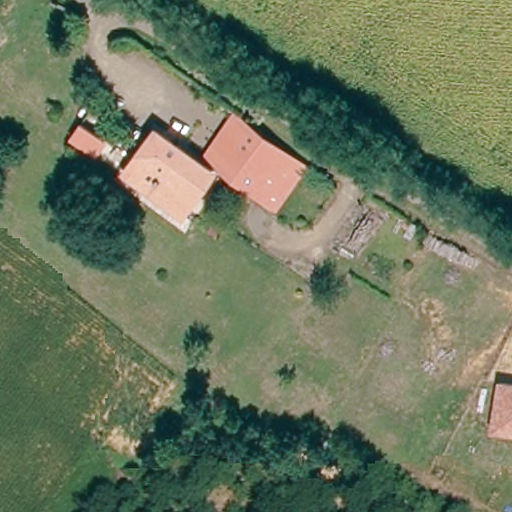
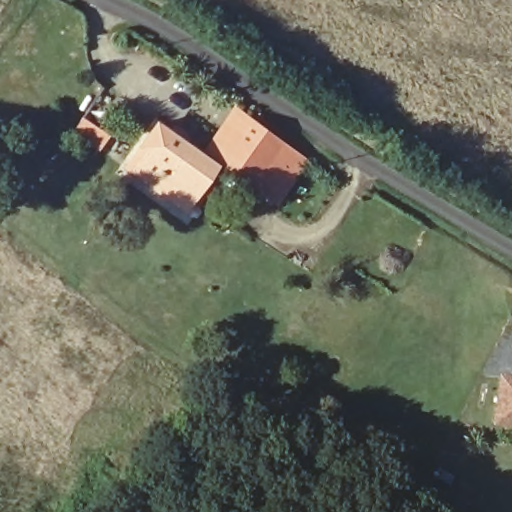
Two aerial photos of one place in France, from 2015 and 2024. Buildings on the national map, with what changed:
unchanged [(273,199),(217,157),(246,119),(301,162),(273,199)]
unchanged [(183,207),(128,169),(155,131),(210,169),(183,207)]
unchanged [(491,424),(499,374),(512,376),(512,427),(491,424)]

